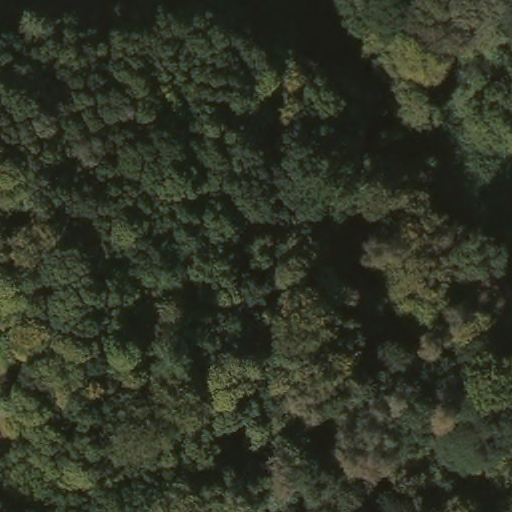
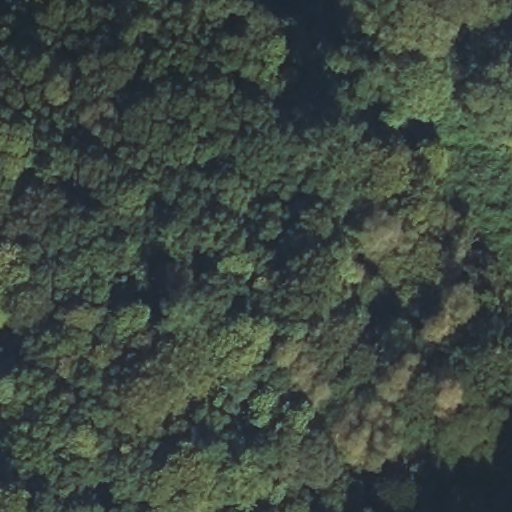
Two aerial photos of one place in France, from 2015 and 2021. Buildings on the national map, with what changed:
[]

